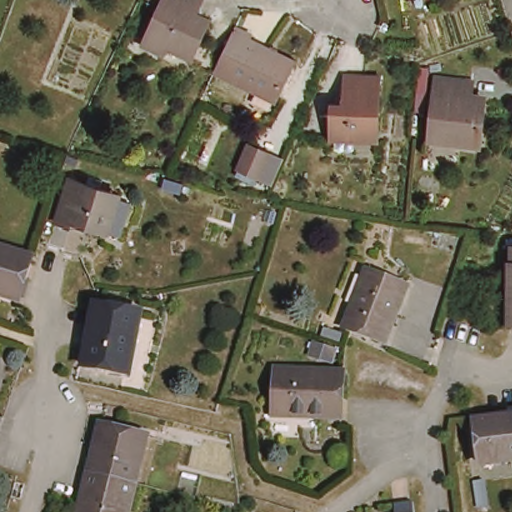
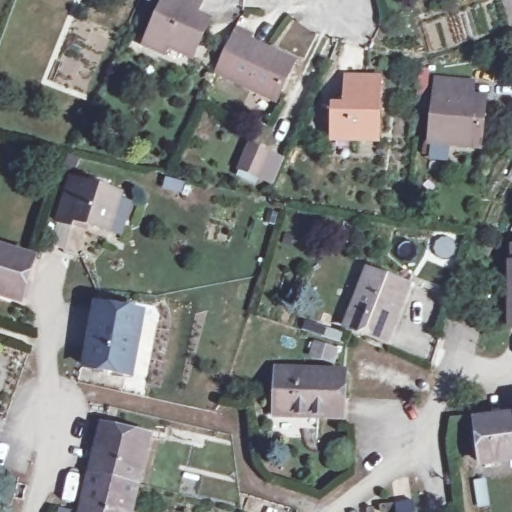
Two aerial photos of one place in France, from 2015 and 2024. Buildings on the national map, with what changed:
unchanged [(182,50),(170,44),(165,50),(143,40),(161,0),(197,0),(192,10),(205,15),(209,22),(202,37),(193,55),(182,50)]
unchanged [(241,31),(255,39),(253,45),(299,66),(280,103),(221,76),(241,31)]
unchanged [(377,139),(331,136),(332,104),(342,104),(344,74),(380,76),(377,139)]
unchanged [(432,151),(430,101),(428,85),(463,82),(465,99),(483,97),(485,149),(468,150),(452,150),(432,151)]
unchanged [(269,150),(257,178),(237,169),(249,141),(269,150)]
unchanged [(119,195),(110,234),(77,227),(77,232),(60,227),(70,183),(119,195)]
unchanged [(35,258),(22,302),(2,296),(0,296),(0,249),(35,258)]
unchanged [(402,302),(398,301),(384,338),(347,328),(367,270),(408,282),(402,302)]
unchanged [(84,361),(100,304),(144,316),(129,373),(84,361)]
unchanged [(326,360),(306,352),(310,340),(331,346),(326,360)]
unchanged [(327,416),(272,417),(272,371),(337,370),(337,397),(338,415),(327,416)]
unchanged [(477,415),(512,411),(512,456),(482,459),(477,415)]
unchanged [(88,473),(100,427),(147,437),(136,483),(88,473)]
unchanged [(79,512),(88,473),(136,483),(130,512),(79,512)]
unchanged [(418,501),(420,512),(399,512),(398,503),(418,501)]

